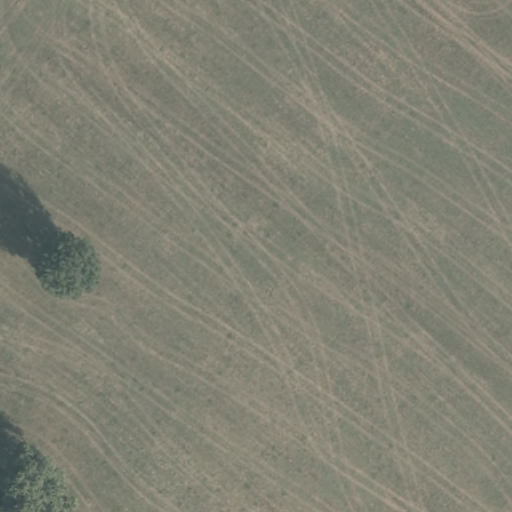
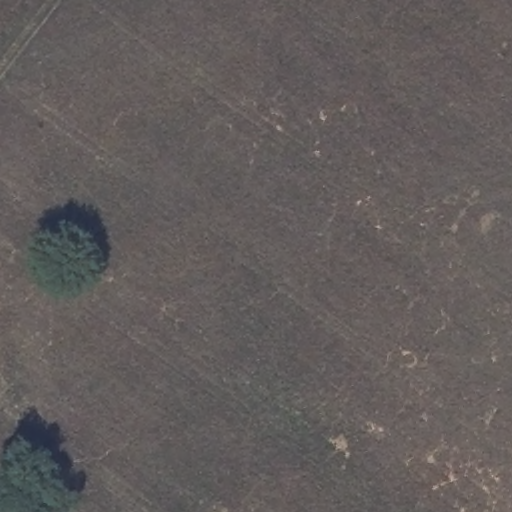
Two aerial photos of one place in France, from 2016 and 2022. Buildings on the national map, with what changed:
[]

